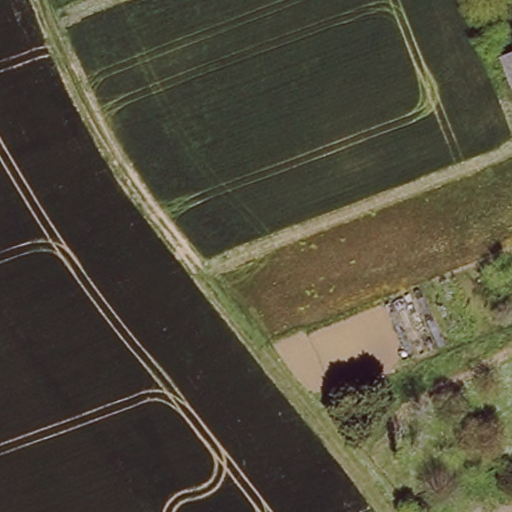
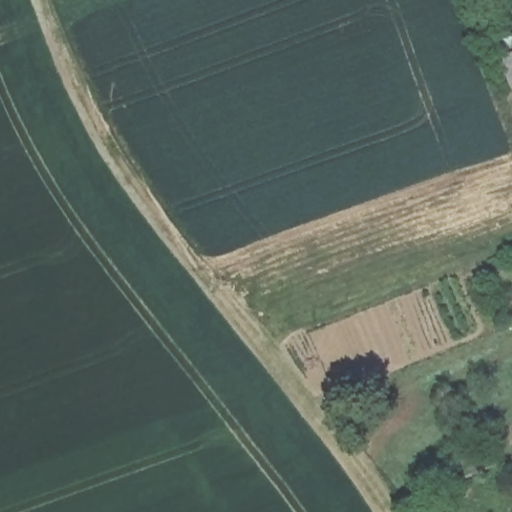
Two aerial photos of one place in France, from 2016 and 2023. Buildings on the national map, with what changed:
unchanged [(509,89),(498,59),(512,53),(512,87),(509,89)]

